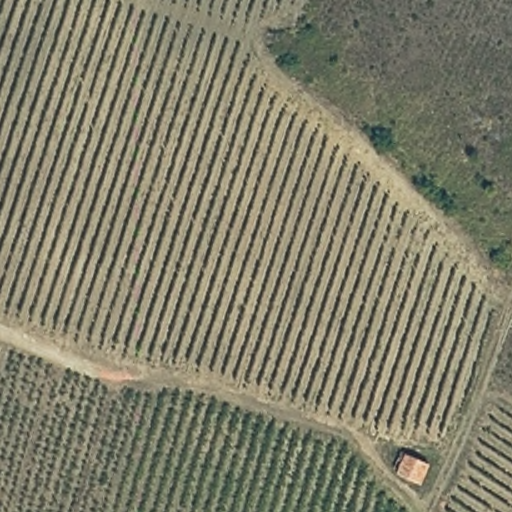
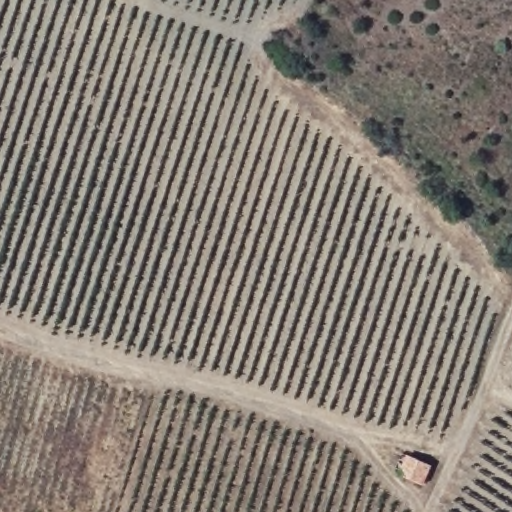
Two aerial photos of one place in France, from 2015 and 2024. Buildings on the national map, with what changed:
unchanged [(405,453),(430,465),(422,485),(397,473),(405,453)]

